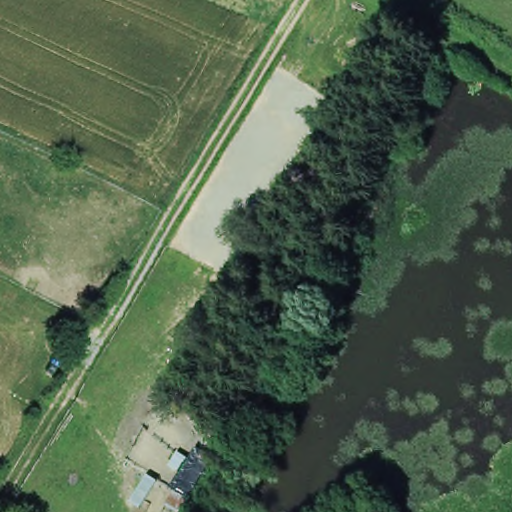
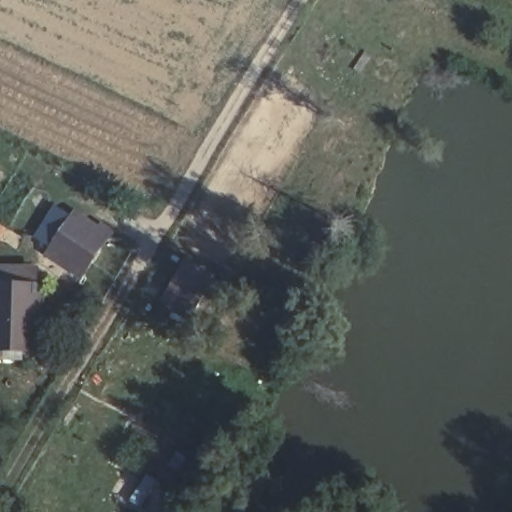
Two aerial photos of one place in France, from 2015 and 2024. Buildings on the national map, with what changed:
new [(84,277),(46,254),(76,207),(114,231),(84,277)]
new [(18,352),(17,361),(0,361),(0,283),(47,282),(42,352),(18,352)]

